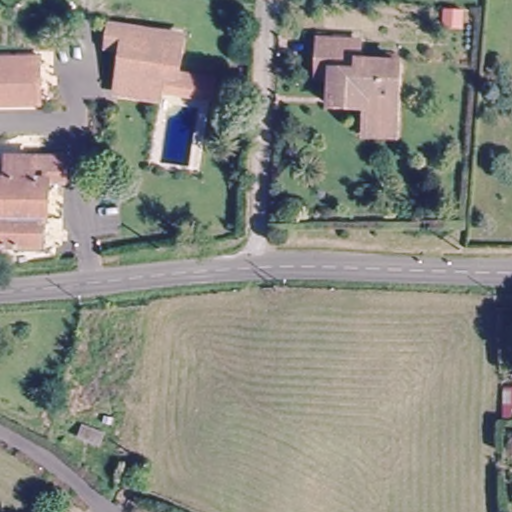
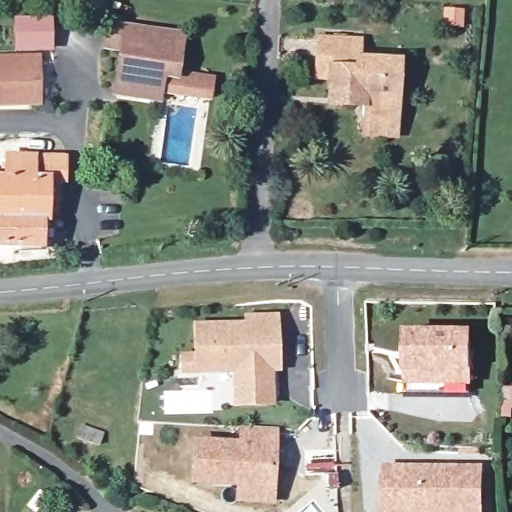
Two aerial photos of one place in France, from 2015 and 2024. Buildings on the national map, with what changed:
new [(14,18),(53,18),(53,52),(14,51),(14,18)]
unchanged [(212,95),(200,94),(161,92),(160,99),(121,97),(124,52),(107,51),(109,32),(178,35),(175,76),(201,77),(213,78),(212,95)]
unchanged [(361,134),(363,110),(363,102),(322,99),(323,78),(308,77),(311,33),(356,35),(356,54),(396,57),(392,113),(390,136),(361,134)]
new [(0,107),(0,56),(40,56),(41,106),(0,107)]
unchanged [(45,217),(38,217),(38,248),(0,248),(0,159),(60,158),(60,181),(45,181),(45,217)]
new [(233,408),(231,375),(178,377),(179,353),(194,351),(192,323),(242,321),(243,315),(278,315),(280,374),(275,374),(275,410),(233,408)]
new [(403,328),(473,330),(472,386),(403,385),(403,328)]
new [(275,506),(234,504),(232,487),(188,486),(192,437),(237,440),(239,427),(278,430),(275,506)]
new [(380,465),(482,465),(483,512),(380,512),(380,465)]

